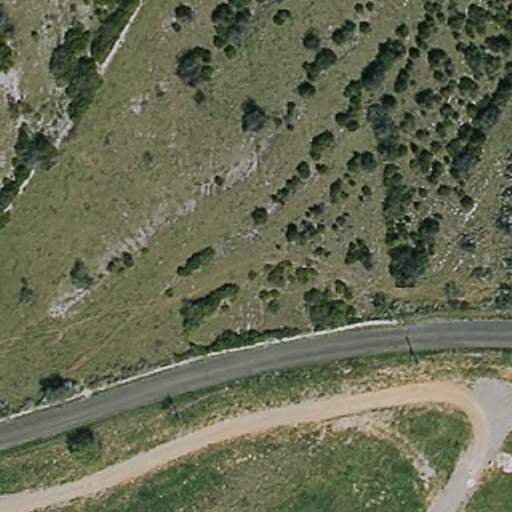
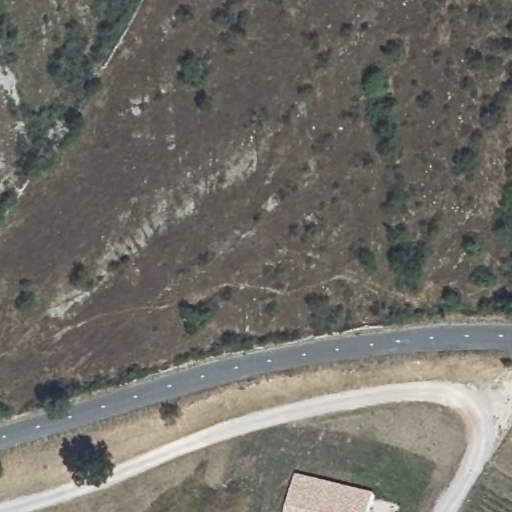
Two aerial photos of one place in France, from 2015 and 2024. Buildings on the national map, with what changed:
new [(371,512),(288,512),(297,477),(375,496),(371,512)]

